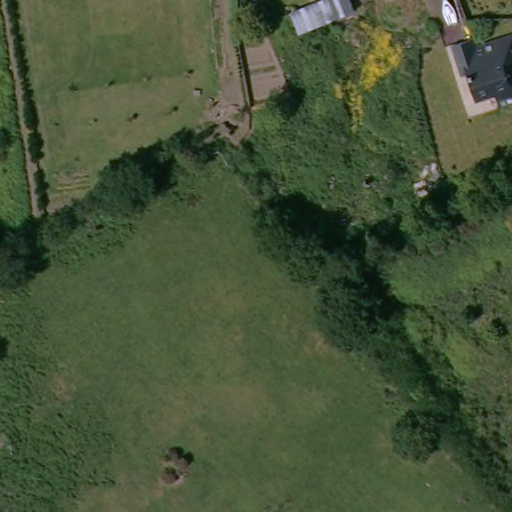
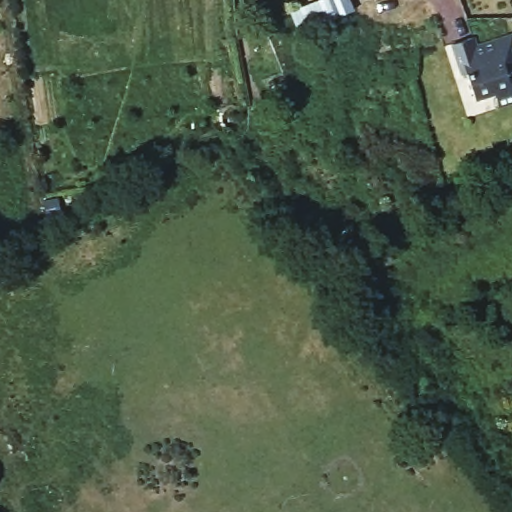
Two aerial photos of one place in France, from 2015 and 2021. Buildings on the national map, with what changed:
unchanged [(494,92),(474,98),(468,72),(462,73),(454,40),(477,35),(479,45),(512,37),(512,106),(498,109),(494,92)]

